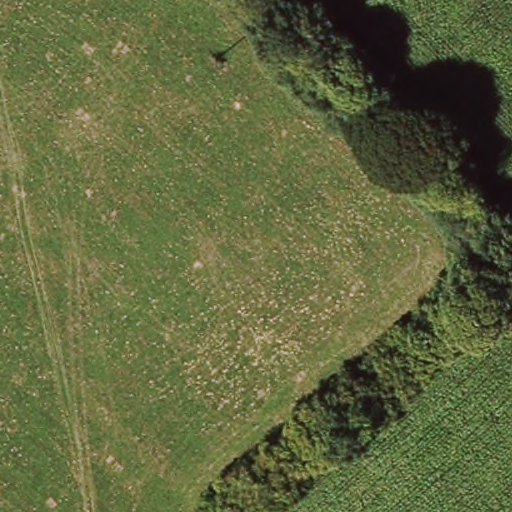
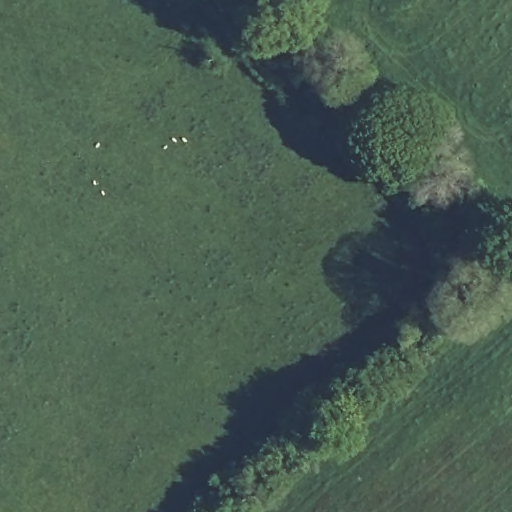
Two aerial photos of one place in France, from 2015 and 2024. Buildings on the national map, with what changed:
[]

